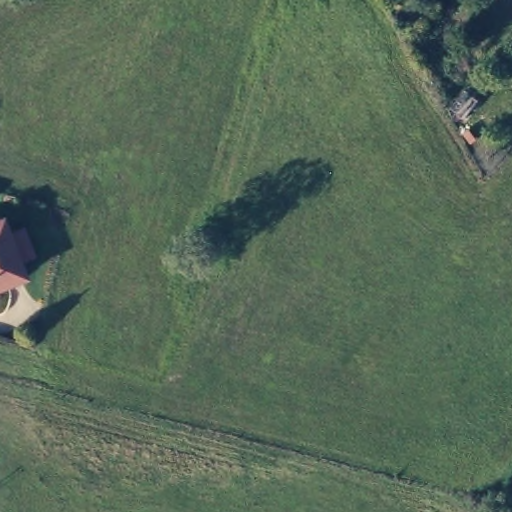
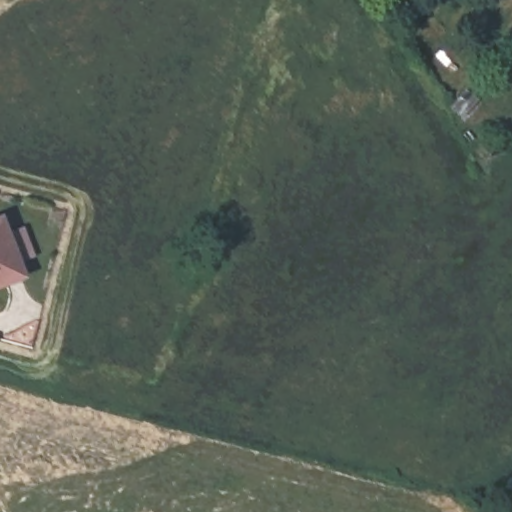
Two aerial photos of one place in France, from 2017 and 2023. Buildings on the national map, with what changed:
unchanged [(2,219),(24,277),(0,287),(0,220),(2,219)]

